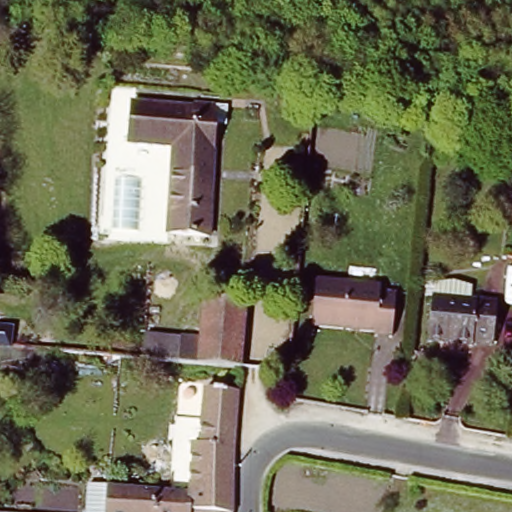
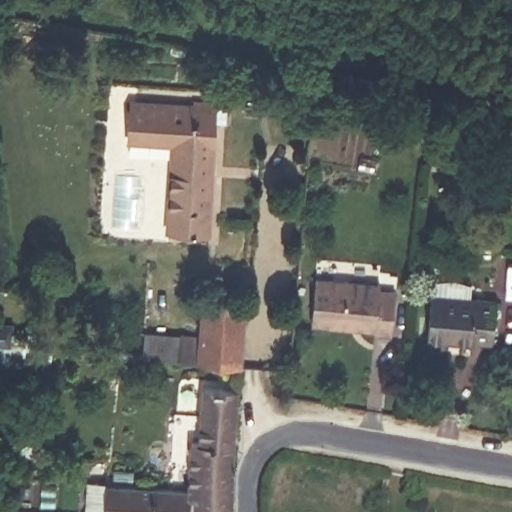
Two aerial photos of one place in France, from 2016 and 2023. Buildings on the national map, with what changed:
unchanged [(173,145),(129,141),(133,103),(196,108),(196,101),(216,102),(216,109),(210,235),(168,232),(173,145)]
unchanged [(429,282),(449,281),(468,286),(466,300),(492,302),(489,344),(469,342),(469,345),(424,341),(429,297),(429,282)]
unchanged [(311,282),(376,289),(376,295),(391,297),(387,339),(371,337),(371,334),(306,327),(311,282)]
unchanged [(178,365),(182,339),(201,341),(205,303),(246,306),(241,371),(178,365)]
unchanged [(2,350),(3,343),(0,342),(0,324),(14,326),(12,344),(11,350),(2,350)]
unchanged [(191,423),(198,423),(201,393),(233,396),(233,403),(229,456),(229,471),(215,470),(215,461),(188,459),(191,423)]
unchanged [(187,497),(188,477),(229,477),(228,512),(186,512),(187,497)]
unchanged [(103,490),(187,497),(186,512),(102,512),(103,490)]

